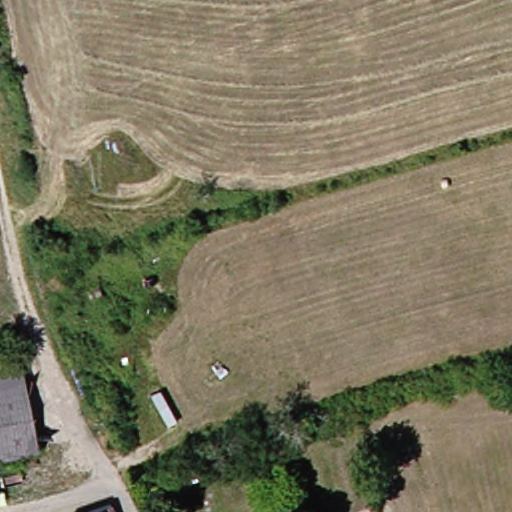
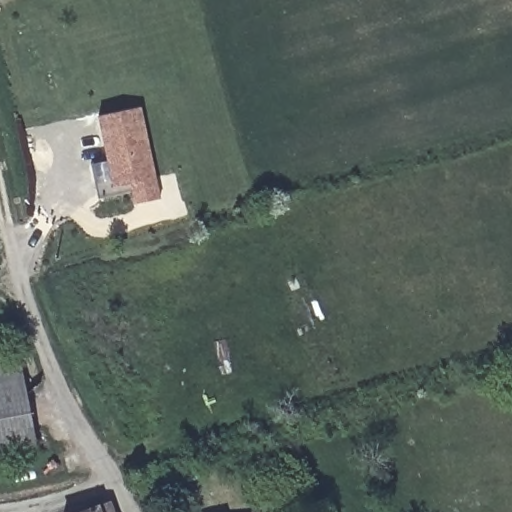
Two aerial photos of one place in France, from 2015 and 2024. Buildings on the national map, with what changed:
new [(115,188),(99,115),(142,106),(161,198),(135,204),(130,185),(115,188)]
unchanged [(0,354),(16,349),(26,388),(35,424),(32,425),(37,450),(14,454),(0,457),(0,354)]
unchanged [(119,500),(123,512),(79,512),(119,500)]

